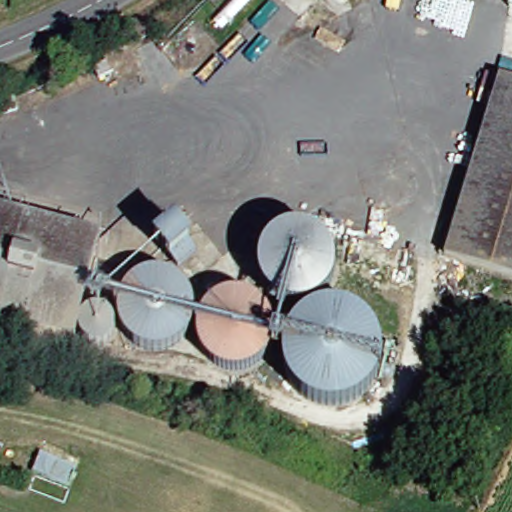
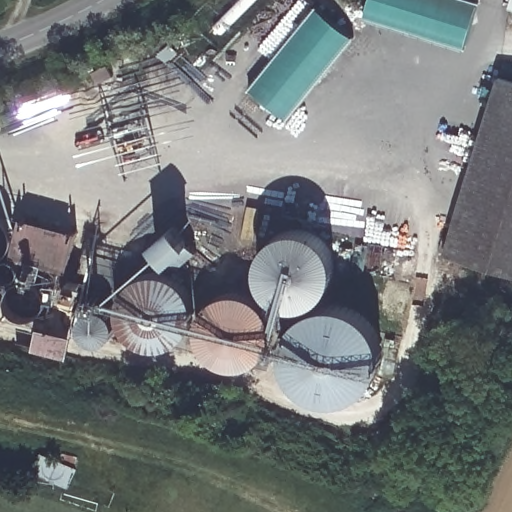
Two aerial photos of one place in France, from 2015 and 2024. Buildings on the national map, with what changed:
new [(368,0),(469,0),(476,2),(462,50),(362,18),(368,0)]
unchanged [(508,7),(510,0),(512,0),(512,8),(508,7)]
new [(315,6),(353,37),(285,119),(247,87),(315,6)]
unchanged [(440,250),(490,77),(512,84),(512,271),(440,250)]
unchanged [(70,338),(0,319),(0,214),(94,238),(70,338)]
unchanged [(313,295),(303,300),(289,304),(275,303),(265,297),(256,285),(251,271),(251,257),(259,243),(271,233),(288,229),(305,230),(316,238),(323,248),(328,262),(327,277),(320,289),(313,295)]
unchanged [(186,296),(187,310),(185,322),(179,333),(169,341),(156,347),(145,347),(134,344),(125,338),(119,330),(115,315),(115,302),(122,290),(134,278),(149,273),(158,273),(169,276),(179,284),(186,296)]
unchanged [(219,366),(205,359),(195,347),(191,333),(191,320),(200,305),(210,298),(221,293),(237,294),(251,298),(262,312),(266,324),(264,343),(257,353),(247,362),(231,368),(219,366)]
unchanged [(312,398),(296,392),(285,381),(277,367),(275,349),(280,332),(299,313),(315,306),(335,305),(350,310),(366,325),(375,345),(373,366),(365,381),(354,393),(337,400),(312,398)]

